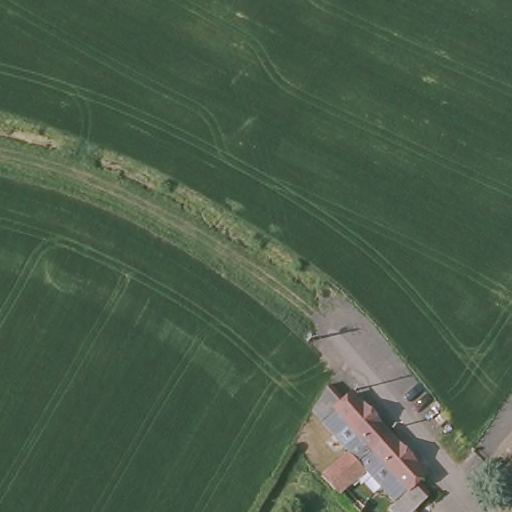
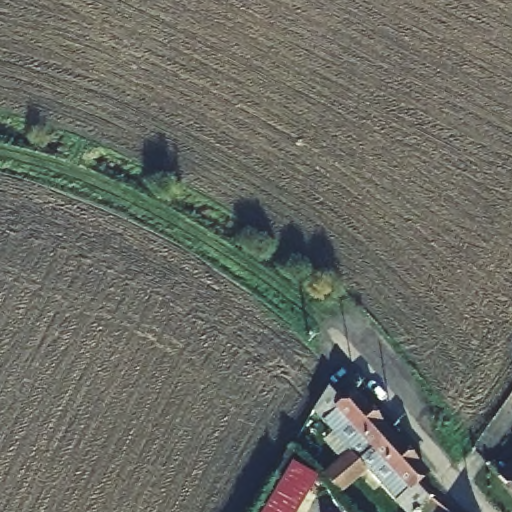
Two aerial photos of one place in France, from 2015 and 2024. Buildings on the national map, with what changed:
unchanged [(350,393),(357,387),(391,425),(335,476),(327,468),(355,444),(317,403),(333,375),(350,393)]
unchanged [(429,468),(421,475),(435,489),(422,512),(416,512),(370,458),(342,484),(335,476),(391,425),(429,468)]
unchanged [(512,455),(512,493),(493,474),(512,455)]
new [(296,512),(262,512),(290,462),(316,477),(296,512)]

